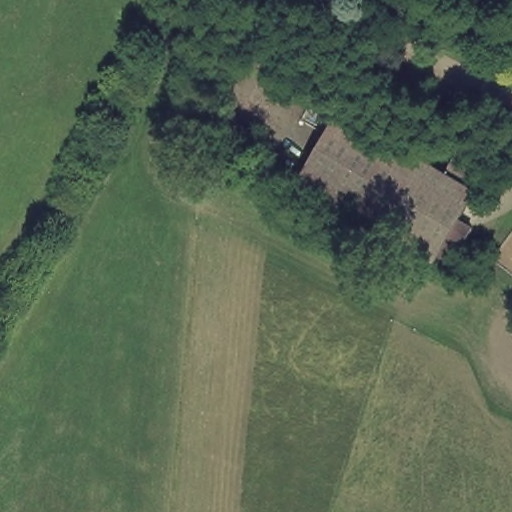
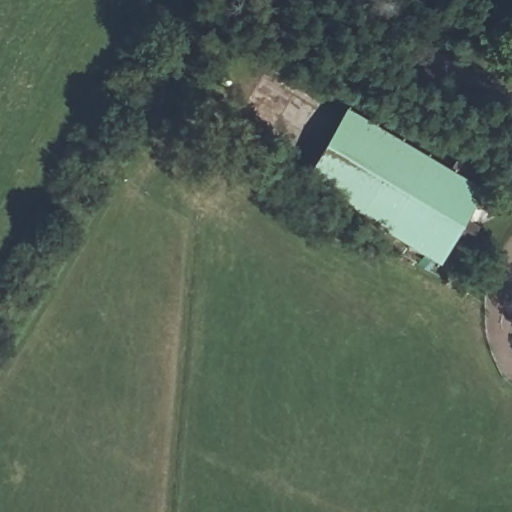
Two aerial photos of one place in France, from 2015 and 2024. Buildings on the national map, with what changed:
unchanged [(435,261),(296,181),(337,111),(478,189),(435,261)]

